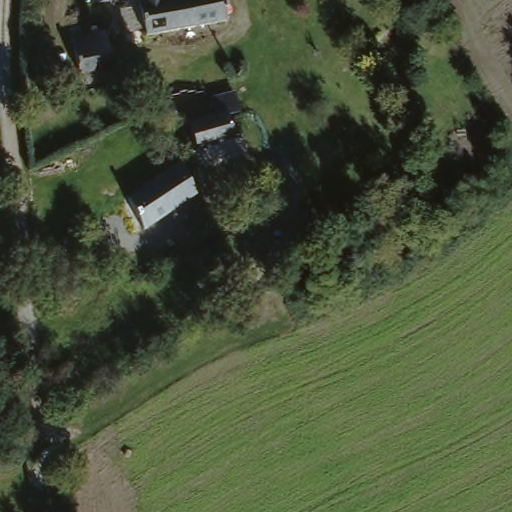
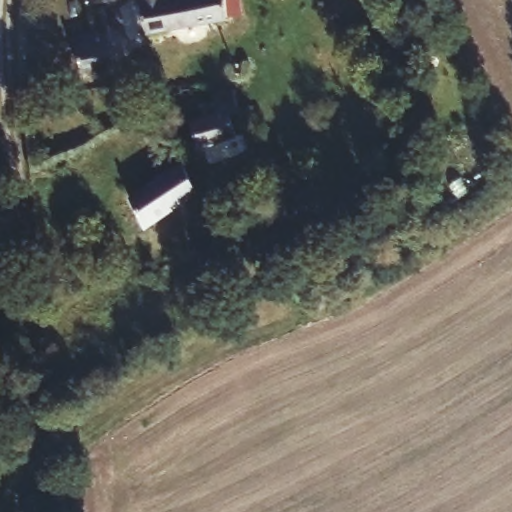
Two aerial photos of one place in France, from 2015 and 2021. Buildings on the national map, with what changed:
unchanged [(111,4),(110,4),(103,6),(85,7),(85,0),(119,0),(120,1),(111,4)]
unchanged [(145,30),(141,0),(224,0),(227,20),(145,30)]
unchanged [(83,76),(80,36),(110,31),(118,69),(83,76)]
unchanged [(242,113),(228,117),(234,134),(197,148),(189,122),(222,110),(218,98),(236,93),(242,113)]
unchanged [(122,186),(116,173),(145,157),(156,175),(186,161),(203,192),(148,225),(118,237),(100,194),(122,186)]
unchanged [(216,260),(215,258),(235,244),(247,264),(229,277),(216,260)]

